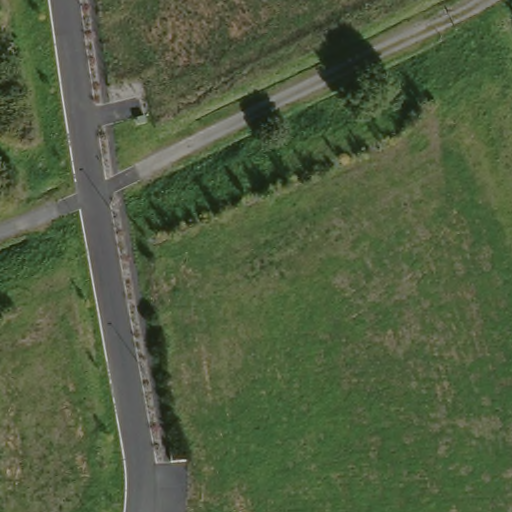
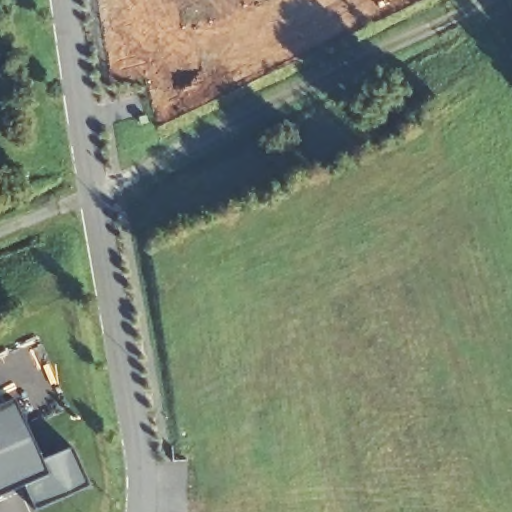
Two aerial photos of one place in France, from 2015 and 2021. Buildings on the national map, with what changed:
new [(34,507),(23,483),(0,494),(0,404),(11,399),(38,457),(69,447),(87,484),(34,507)]

